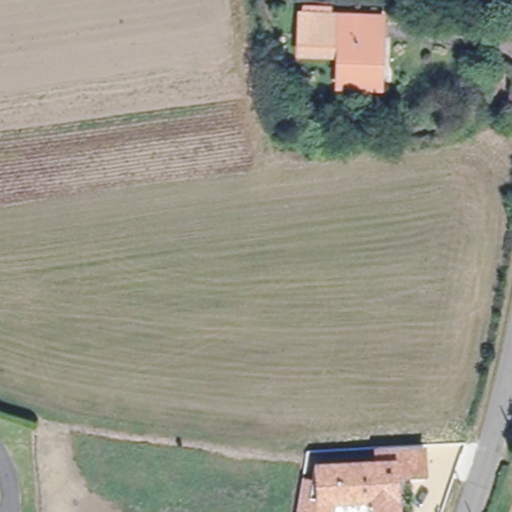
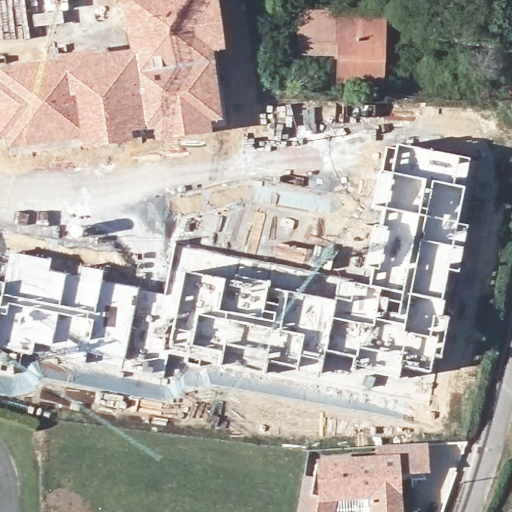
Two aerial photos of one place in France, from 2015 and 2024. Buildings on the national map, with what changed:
new [(54,56),(74,53),(128,51),(120,0),(216,0),(224,52),(213,54),(222,123),(210,125),(211,132),(151,143),(150,137),(114,144),(80,146),(80,142),(9,149),(0,129),(0,127),(4,123),(0,117),(0,114),(0,65),(54,59),(54,56)]
unchanged [(303,19),(303,11),(330,12),(329,20),(383,22),(380,92),(337,90),(338,60),(298,59),(299,42),(299,19),(303,19)]
new [(10,252),(49,260),(48,270),(77,276),(79,266),(103,269),(100,282),(164,295),(175,246),(368,286),(371,270),(363,269),(372,227),(381,229),(383,211),(371,208),(385,149),(395,151),(396,146),(468,160),(455,225),(465,227),(456,273),(446,271),(440,302),(443,302),(440,317),(446,318),(439,360),(432,358),(429,375),(400,370),(398,382),(352,372),(354,360),(324,352),(318,378),(296,375),(296,369),(266,362),(263,377),(216,367),(218,358),(171,348),(165,377),(34,355),(0,347),(0,261),(8,263),(10,252)]
unchanged [(301,476),(316,477),(315,461),(374,457),(374,447),(426,445),(428,475),(399,475),(401,512),(369,512),(367,500),(337,502),(335,512),(296,512),(301,476)]

